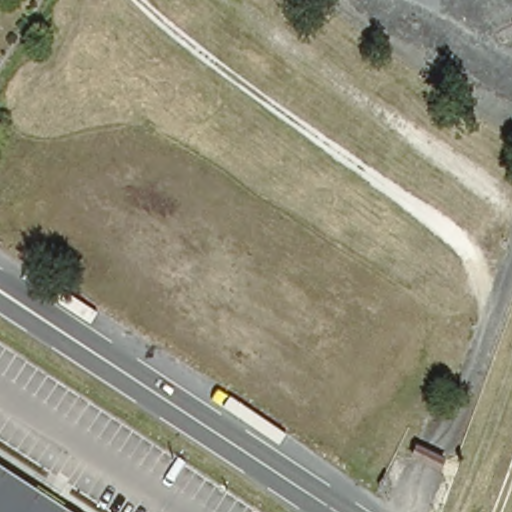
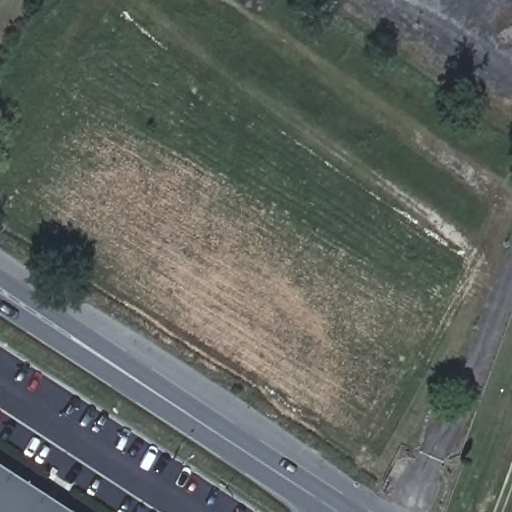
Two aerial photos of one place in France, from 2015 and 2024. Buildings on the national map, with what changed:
unchanged [(0,469),(66,512),(0,512),(0,469)]

